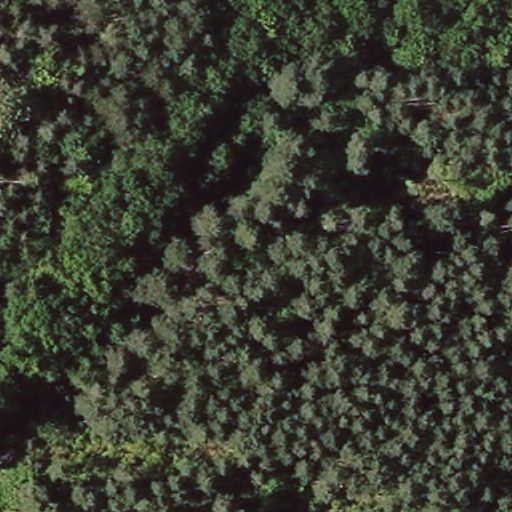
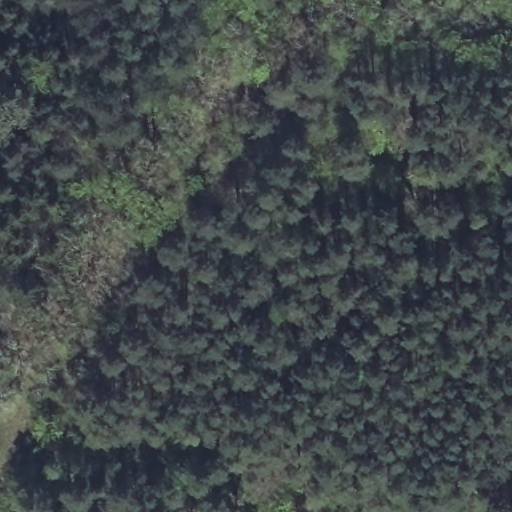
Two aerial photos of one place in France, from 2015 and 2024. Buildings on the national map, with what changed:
[]

